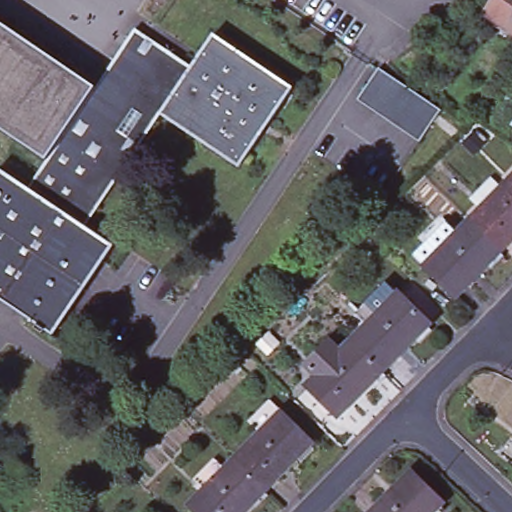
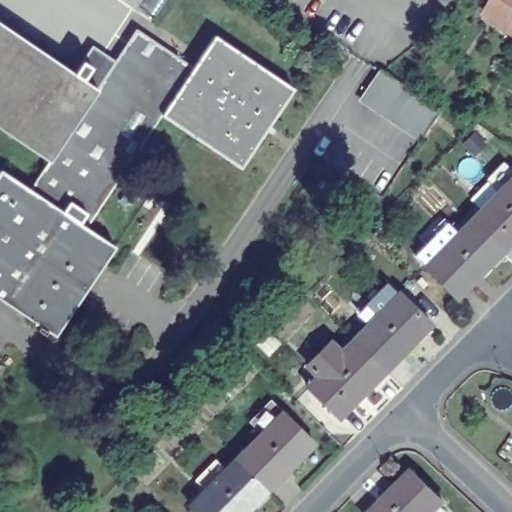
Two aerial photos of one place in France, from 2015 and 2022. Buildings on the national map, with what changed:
unchanged [(486,16),(496,0),(512,0),(512,33),(486,16)]
unchanged [(46,328),(43,333),(34,327),(37,322),(0,298),(0,169),(26,187),(46,158),(0,128),(0,25),(93,87),(132,27),(190,66),(210,34),(291,87),(239,166),(158,112),(83,225),(112,244),(53,333),(46,328)]
unchanged [(443,112),(386,199),(323,157),(382,71),(386,74),(443,112)]
unchanged [(473,219),(512,180),(512,243),(505,250),(473,219)]
unchanged [(427,266),(428,265),(417,254),(450,221),(460,232),(473,219),(505,250),(458,297),(427,266)]
unchanged [(382,310),(370,297),(390,277),(403,290),(435,321),(386,370),(355,338),(382,310)]
unchanged [(310,383),(316,376),(302,362),(312,352),(324,341),(339,353),(355,338),(386,370),(341,415),(310,383)]
unchanged [(253,441),(239,427),(257,409),(271,423),(284,410),(315,442),(270,487),(238,456),(253,441)]
unchanged [(193,502),(206,488),(192,474),(210,456),(225,470),(238,456),(270,487),(245,512),(204,512),(193,502)]
unchanged [(442,501),(431,512),(370,512),(411,471),(442,501)]

